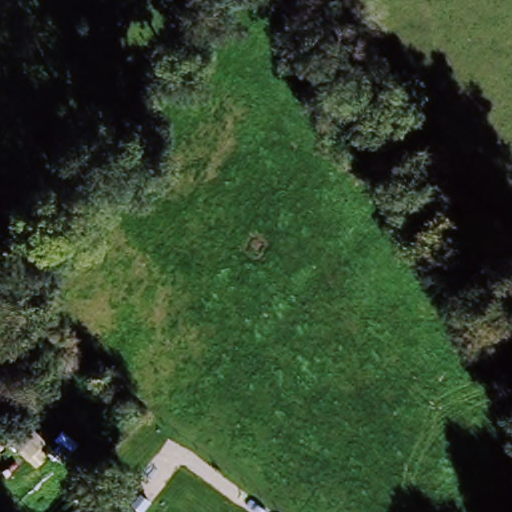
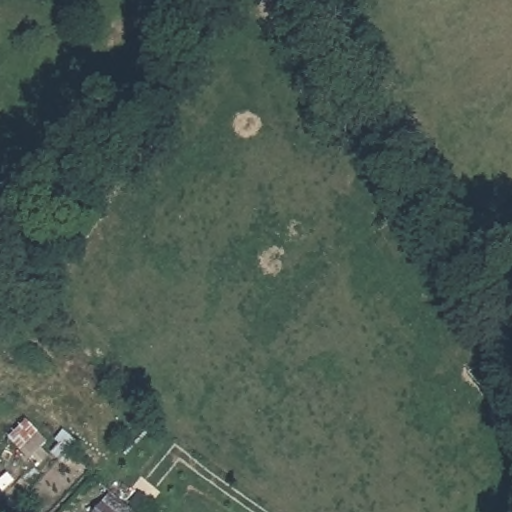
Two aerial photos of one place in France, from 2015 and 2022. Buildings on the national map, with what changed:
unchanged [(19,410),(0,427),(0,385),(19,410)]
unchanged [(94,512),(106,498),(122,512),(94,512)]

